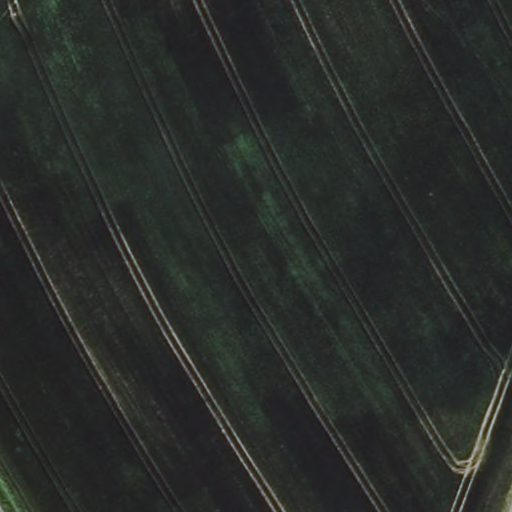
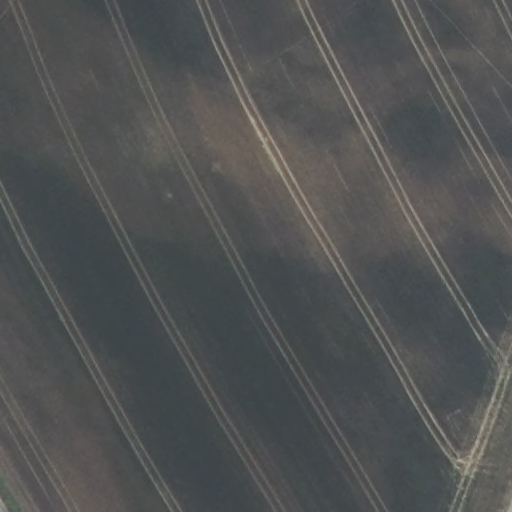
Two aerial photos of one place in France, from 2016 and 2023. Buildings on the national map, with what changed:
[]

